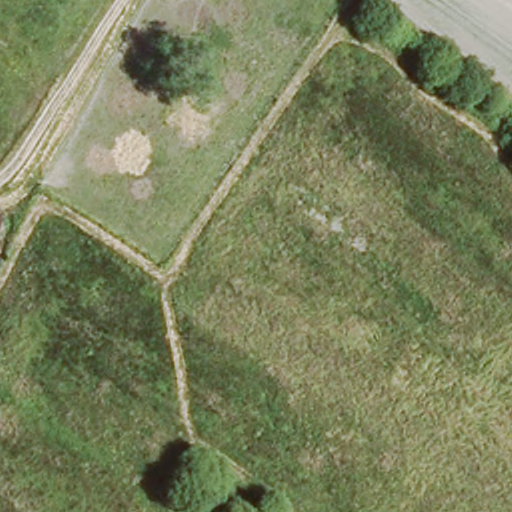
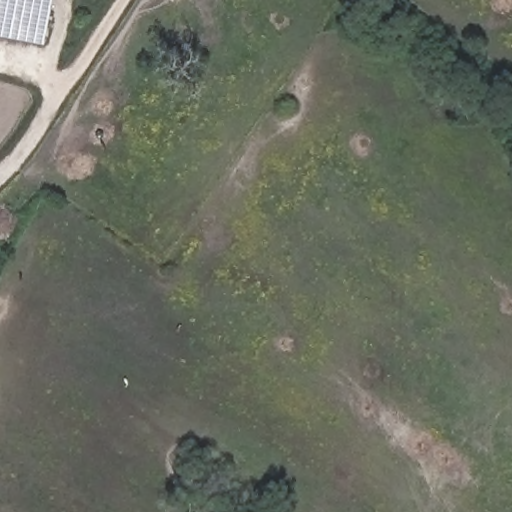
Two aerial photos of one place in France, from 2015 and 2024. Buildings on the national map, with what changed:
new [(42,46),(0,38),(0,0),(51,0),(42,46)]

